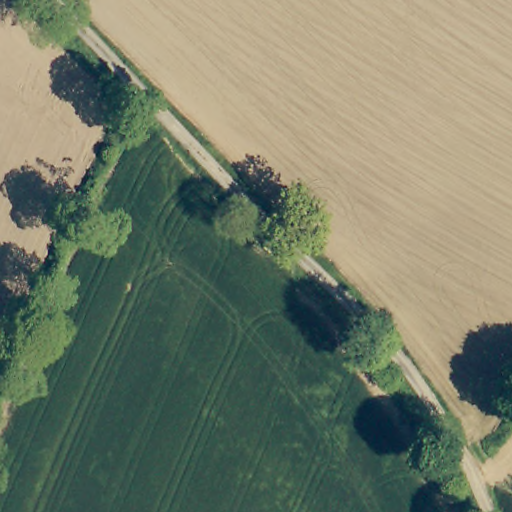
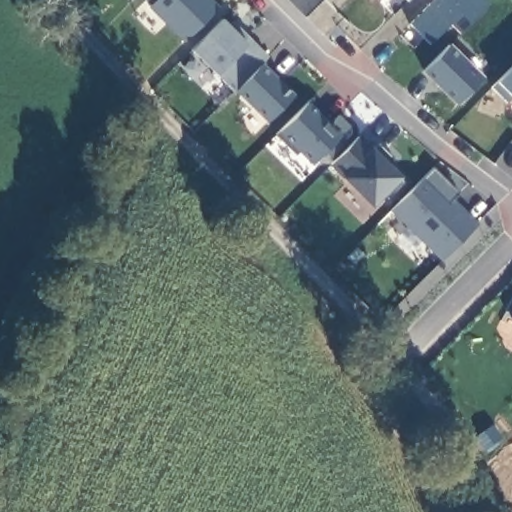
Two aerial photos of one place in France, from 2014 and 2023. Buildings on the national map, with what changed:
new [(220,4),(185,40),(144,0),(215,0),(220,4)]
new [(490,2),(460,32),(450,22),(430,43),(410,23),(432,0),(487,0),(490,2)]
new [(238,35),(243,30),(268,56),(262,62),(295,92),(268,121),(216,73),(190,48),(221,16),(238,35)]
new [(456,102),(421,69),(447,42),(481,77),(456,102)]
new [(505,100),(492,87),(498,82),(512,67),(512,96),(505,100)]
new [(340,136),(344,139),(327,157),(321,153),(310,163),(274,130),(305,98),(330,122),(337,113),(349,125),(340,136)]
new [(372,147),(376,142),(391,156),(386,161),(401,175),(372,204),(340,174),(329,164),(359,135),(372,147)]
new [(439,259),(423,243),(412,255),(392,236),(403,225),(388,209),(432,166),(460,193),(453,199),(476,222),(439,259)]

